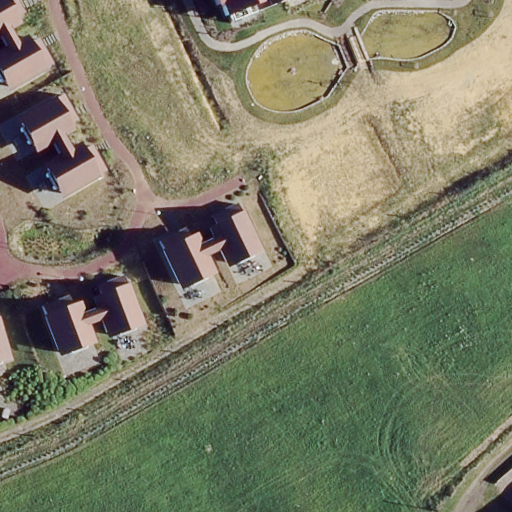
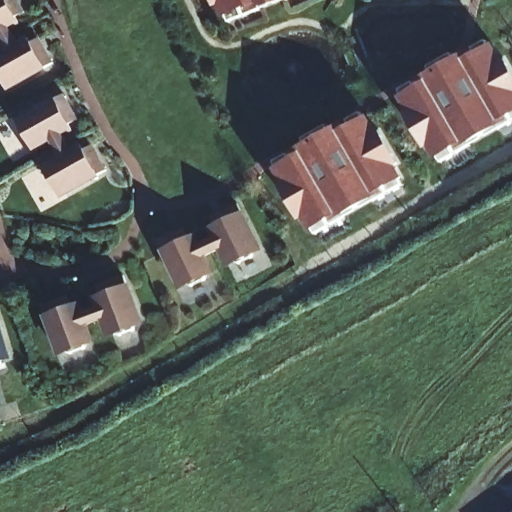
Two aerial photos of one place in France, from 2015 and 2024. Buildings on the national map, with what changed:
unchanged [(52,64),(11,87),(9,83),(7,85),(0,82),(0,52),(6,49),(0,37),(0,0),(16,0),(18,4),(10,9),(18,24),(7,29),(15,44),(26,38),(34,52),(43,47),(48,56),(52,64)]
unchanged [(246,9),(224,20),(219,9),(215,11),(211,0),(285,0),(249,15),(246,9)]
new [(426,81),(423,76),(442,65),(470,56),(495,41),(512,73),(512,119),(461,150),(456,149),(435,162),(426,154),(414,132),(397,97),(426,81)]
unchanged [(76,120),(69,125),(72,132),(63,137),(70,149),(78,144),(82,151),(91,146),(105,171),(97,177),(60,197),(56,192),(52,190),(45,177),(45,173),(42,166),(57,157),(50,146),(35,154),(31,148),(27,146),(20,134),(20,127),(15,119),(53,99),(62,94),(76,120)]
new [(310,235),(301,226),(277,183),(273,169),(295,157),(294,151),(317,137),(346,127),(367,115),(405,181),(310,235)]
unchanged [(185,286),(178,290),(160,252),(158,244),(186,231),(190,237),(195,235),(199,244),(212,239),(207,229),(213,226),(210,217),(237,204),(243,214),(260,252),(251,255),(250,260),(235,266),(231,264),(225,269),(218,252),(206,257),(213,275),(205,278),(203,282),(190,288),(185,286)]
unchanged [(49,304),(58,301),(62,310),(77,304),(81,316),(97,310),(93,298),(108,292),(105,283),(115,280),(122,277),(140,321),(135,322),(136,325),(133,331),(118,337),(112,333),(111,332),(106,333),(101,320),(85,325),(90,339),(86,341),(87,343),(84,350),(69,355),(63,352),(62,350),(57,351),(41,307),(49,304)]
unchanged [(7,355),(2,356),(3,358),(0,364),(0,332),(7,355)]
unchanged [(512,509),(512,512),(509,512),(512,509)]

